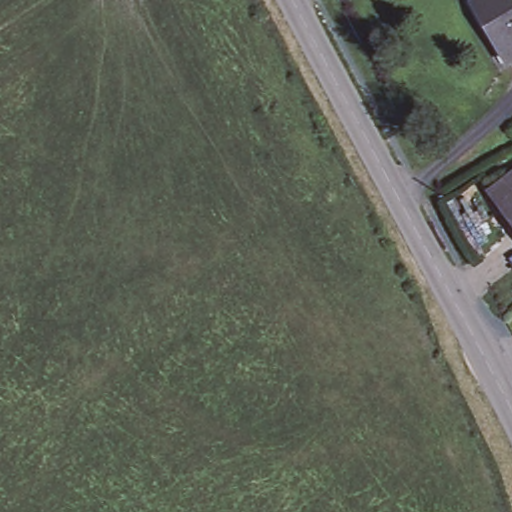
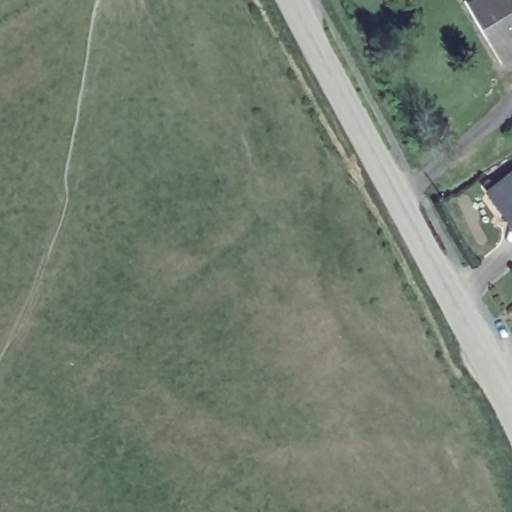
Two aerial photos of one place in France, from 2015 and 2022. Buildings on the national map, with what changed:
unchanged [(471,0),(512,0),(512,55),(500,61),(471,0)]
unchanged [(487,194),(512,174),(512,218),(507,222),(487,194)]

